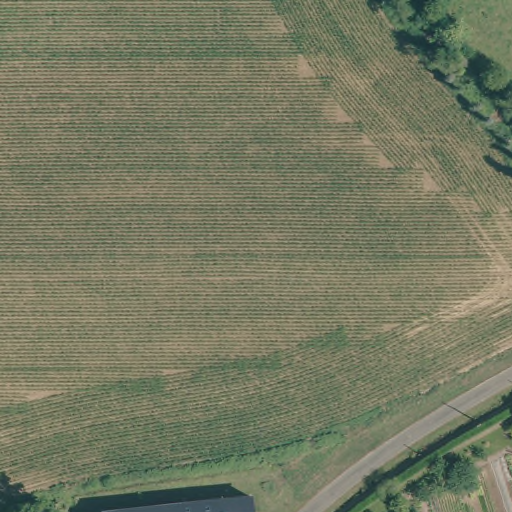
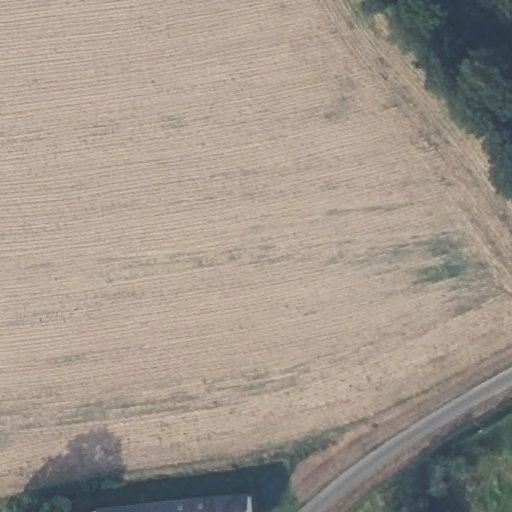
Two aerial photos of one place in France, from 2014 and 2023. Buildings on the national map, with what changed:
unchanged [(266,512),(102,512),(101,509),(117,507),(263,489),(266,512)]

